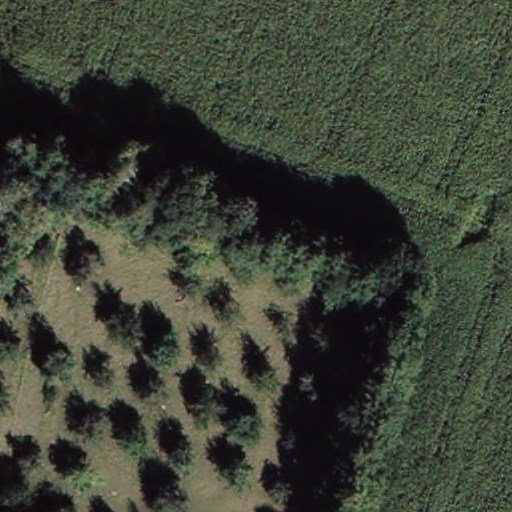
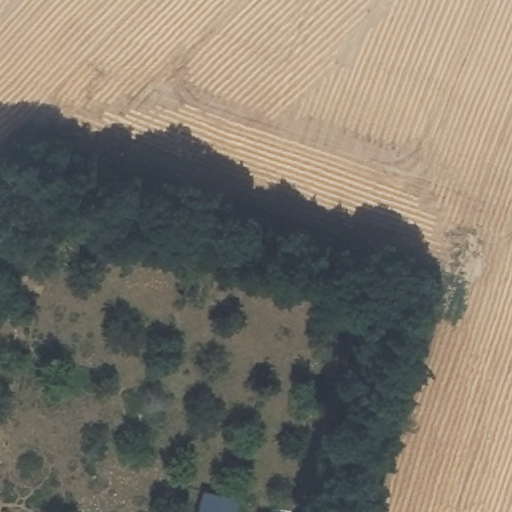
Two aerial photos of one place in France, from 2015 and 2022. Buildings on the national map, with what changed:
new [(241,496),(238,512),(200,512),(205,491),(241,496)]

